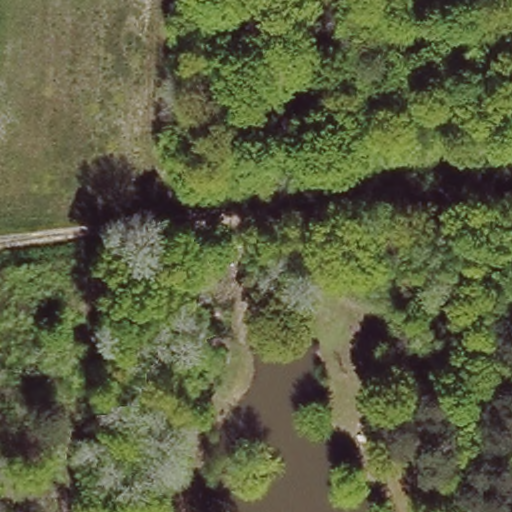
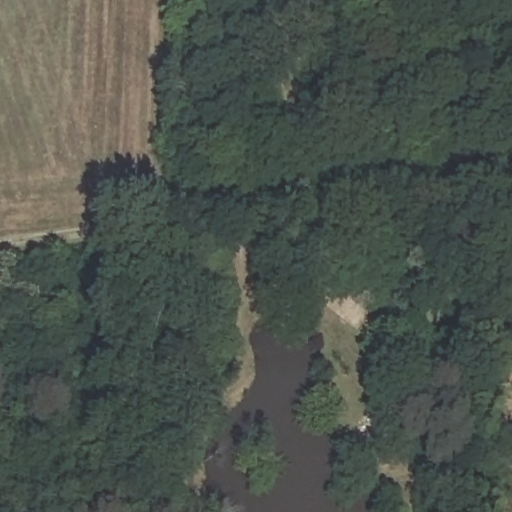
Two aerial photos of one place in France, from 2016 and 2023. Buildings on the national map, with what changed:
unchanged [(255,2),(247,19),(235,14),(242,0),(251,0),(255,2)]
unchanged [(93,423),(97,391),(136,396),(131,429),(93,423)]

